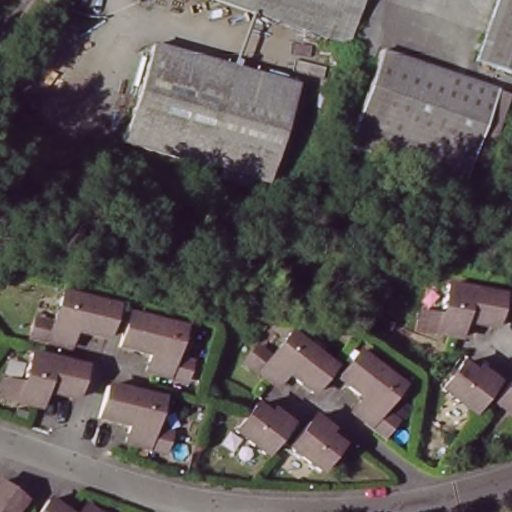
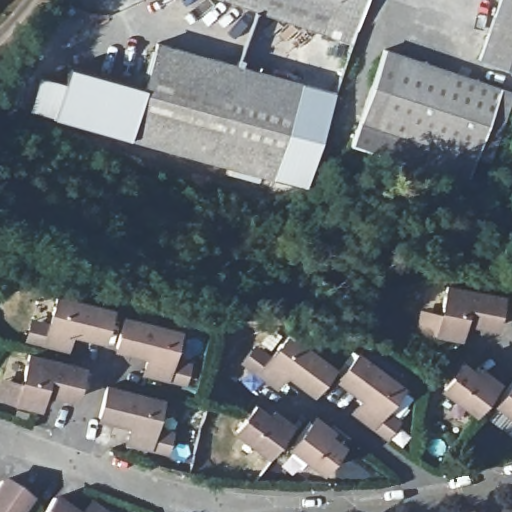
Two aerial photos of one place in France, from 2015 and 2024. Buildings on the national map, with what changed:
unchanged [(349,0),(369,0),(356,42),(233,0),(320,0),(347,8),(349,0)]
unchanged [(349,0),(347,8),(320,0),(349,0)]
unchanged [(499,0),(512,0),(512,70),(492,62),(479,59),(486,40),(499,0)]
unchanged [(221,60),(265,72),(301,82),(275,178),(198,156),(132,139),(158,44),(221,60)]
unchanged [(477,159),(469,184),(351,144),(385,48),(453,71),(502,86),(477,159)]
new [(132,139),(56,119),(31,112),(40,76),(65,83),(69,66),(146,88),(132,139)]
new [(301,82),(334,91),(309,188),(275,178),(301,82)]
unchanged [(512,90),(512,106),(496,156),(493,165),(477,159),(502,86),(512,90)]
unchanged [(419,310),(428,312),(436,314),(442,283),(459,286),(496,294),(491,326),(479,323),(475,322),(459,320),(456,336),(443,333),(424,330),(415,327),(419,310)]
unchanged [(26,336),(30,319),(40,321),(48,323),(56,294),(90,302),(110,308),(103,338),(90,335),(71,331),(67,347),(35,339),(26,337),(26,336)]
unchanged [(185,380),(176,377),(145,370),(148,353),(132,350),(116,345),(120,329),(125,314),(178,328),(171,357),(181,360),(188,362),(185,380)]
unchanged [(289,333),(332,366),(314,391),(305,385),(288,371),(277,385),(251,365),(244,360),(251,350),(255,346),(263,352),(269,357),(289,333)]
unchanged [(3,378),(13,380),(20,383),(26,360),(28,352),(83,366),(75,397),(63,394),(43,390),(40,405),(8,397),(0,395),(0,387),(2,380),(3,378)]
unchanged [(388,438),(387,438),(380,433),(355,414),(364,401),(354,393),(351,391),(338,381),(356,355),(401,390),(384,413),(390,418),(398,425),(388,438)]
unchanged [(480,403),(471,415),(441,391),(458,368),(467,375),(472,379),(476,374),(492,386),(489,391),(480,403)]
unchanged [(494,407),(504,393),(512,382),(512,420),(494,407)]
unchanged [(168,455),(158,452),(128,445),(131,428),(120,425),(100,420),(107,389),(141,397),(161,402),(155,432),(163,435),(171,436),(168,455)]
unchanged [(271,448),(269,451),(238,429),(256,405),(263,410),(270,415),(274,411),(290,423),(286,427),(271,448)]
unchanged [(334,438),(341,443),(326,463),(324,468),(293,445),(311,420),(314,416),(330,427),(326,432),(334,438)]
unchanged [(28,493),(15,512),(0,512),(0,477),(2,475),(28,493)]
unchanged [(53,498),(69,509),(73,512),(44,512),(53,498)]
unchanged [(90,502),(104,512),(84,512),(90,502)]

